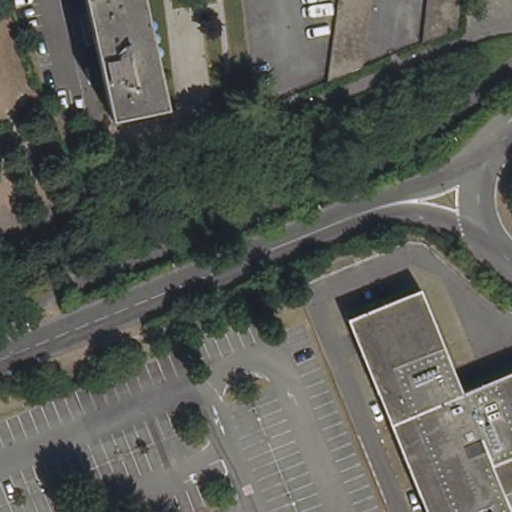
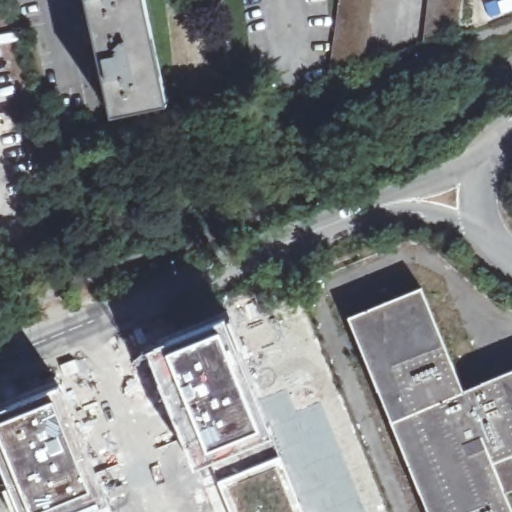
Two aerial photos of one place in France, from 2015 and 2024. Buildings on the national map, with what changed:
unchanged [(112,116),(105,80),(104,77),(96,79),(93,66),(92,59),(100,56),(97,45),(97,42),(97,41),(95,36),(90,13),(87,0),(145,0),(167,105),(112,116)]
unchanged [(364,71),(330,85),(338,20),(340,11),(341,0),(373,0),(372,6),(364,71)]
unchanged [(424,46),(429,0),(462,0),(458,32),(424,46)]
unchanged [(350,318),(422,288),(447,349),(464,391),(512,371),(512,491),(506,494),(512,508),(512,512),(428,512),(350,318)]
new [(166,342),(168,346),(216,327),(214,322),(220,319),(260,400),(277,442),(274,446),(275,447),(212,472),(207,462),(195,467),(172,415),(146,350),(166,342)]
new [(24,403),(55,391),(92,478),(96,476),(107,502),(80,512),(18,512),(12,499),(0,466),(0,408),(22,399),(24,403)]
new [(296,436),(295,429),(292,413),(320,401),(344,456),(367,512),(298,512),(292,497),(291,494),(293,493),(292,490),(295,488),(277,453),(275,447),(274,446),(296,436)]
new [(277,453),(295,488),(292,490),(293,493),(291,494),(292,497),(287,499),(274,469),(239,484),(242,491),(246,490),(250,512),(229,512),(215,480),(277,453)]

